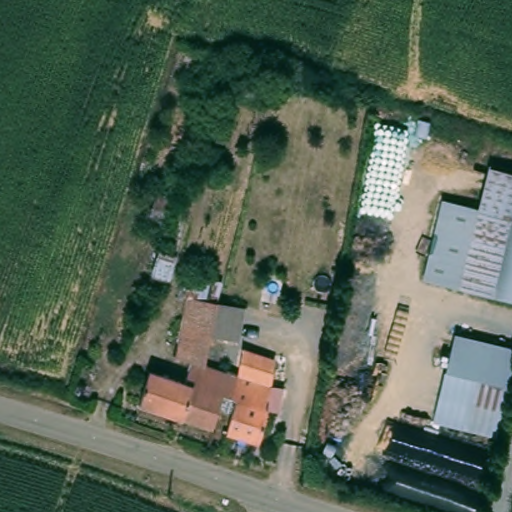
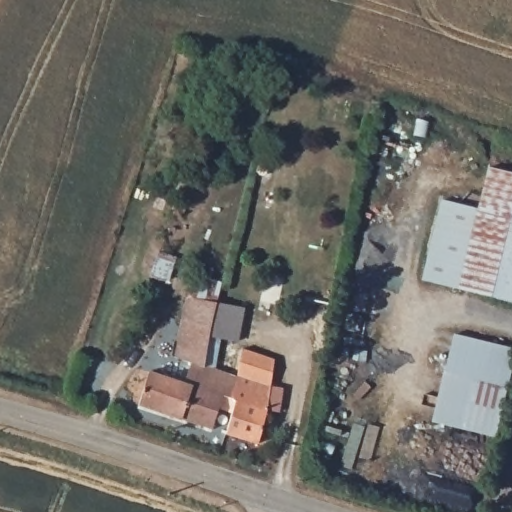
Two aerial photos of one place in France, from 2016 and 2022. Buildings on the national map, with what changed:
unchanged [(478,217),(489,169),(512,174),(512,302),(462,291),(425,283),(441,210),(478,217)]
unchanged [(166,277),(152,274),(156,251),(170,254),(166,277)]
unchanged [(211,408),(205,428),(139,408),(149,374),(182,384),(189,364),(175,357),(185,301),(213,307),(212,310),(208,340),(206,354),(204,367),(218,372),(235,378),(227,412),(211,408)]
unchanged [(512,380),(497,438),(430,421),(452,332),(512,348),(512,380)]
unchanged [(227,412),(235,378),(242,353),(275,360),(270,386),(277,388),(281,389),(275,412),(263,409),(254,443),(221,434),(227,412)]

